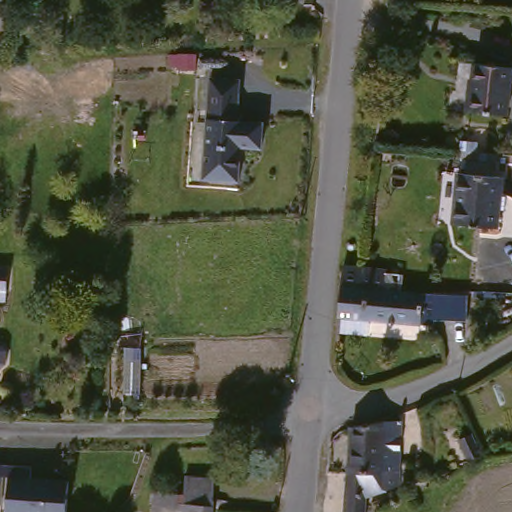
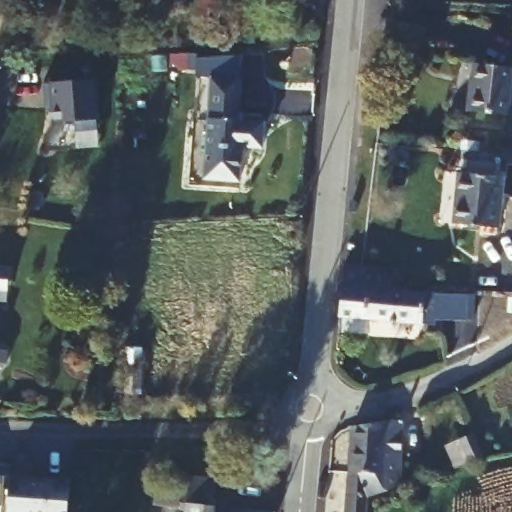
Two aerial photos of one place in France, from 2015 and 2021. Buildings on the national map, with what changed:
unchanged [(512,64),(512,82),(509,113),(470,109),(474,61),(512,64)]
unchanged [(207,77),(236,79),(234,113),(228,112),(227,120),(261,121),(259,147),(238,146),(236,181),(201,179),(206,77),(207,77)]
new [(76,131),(76,121),(66,123),(53,124),(52,110),(44,111),(43,84),(49,82),(95,80),(97,118),(96,130),(76,131)]
unchanged [(459,171),(499,177),(495,228),(456,222),(459,171)]
unchanged [(347,259),(366,260),(393,263),(389,283),(429,286),(428,319),(344,313),(347,259)]
unchanged [(15,271),(13,301),(0,300),(0,268),(15,271)]
unchanged [(347,423),(353,422),(384,417),(403,409),(401,466),(346,464),(347,423)]
unchanged [(465,432),(476,429),(481,452),(470,454),(465,432)]
unchanged [(31,465),(29,476),(68,478),(65,512),(5,512),(8,463),(31,465)]
unchanged [(365,512),(343,512),(346,464),(401,466),(399,485),(367,493),(365,512)]
unchanged [(184,508),(158,507),(159,489),(185,488),(186,477),(216,478),(215,493),(215,512),(184,512),(184,508)]

